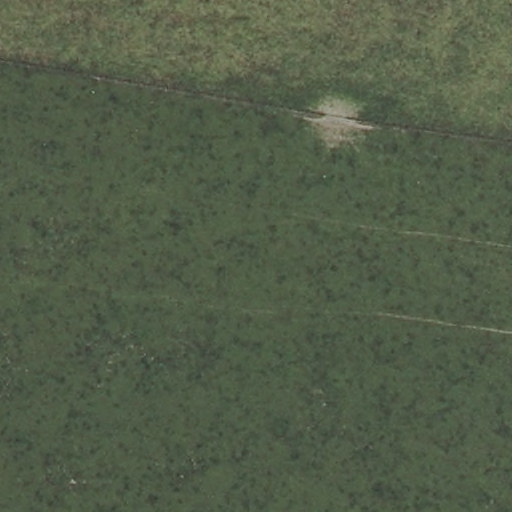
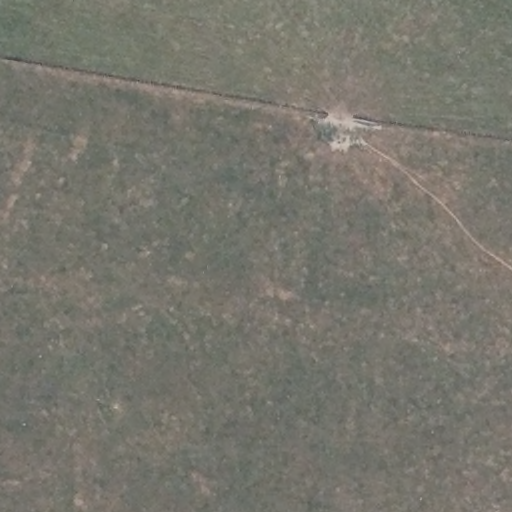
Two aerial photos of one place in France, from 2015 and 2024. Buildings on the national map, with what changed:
[]

